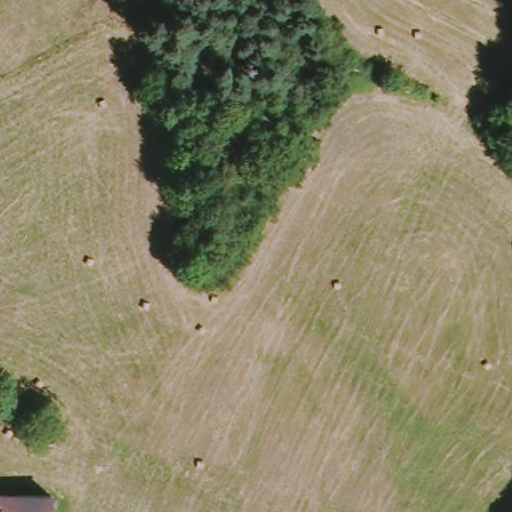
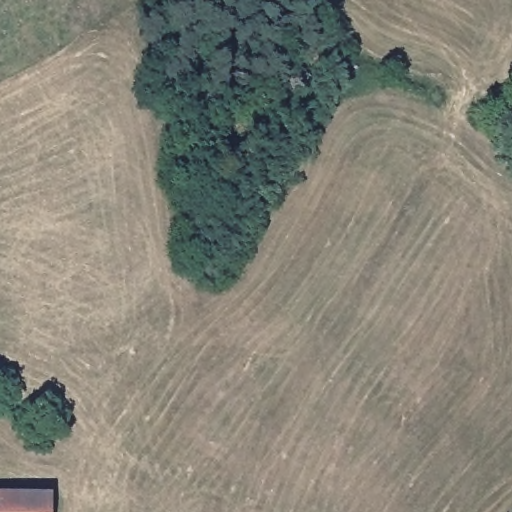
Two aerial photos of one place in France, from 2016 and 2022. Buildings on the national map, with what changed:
unchanged [(56,496),(56,512),(0,512),(0,496),(56,496)]

